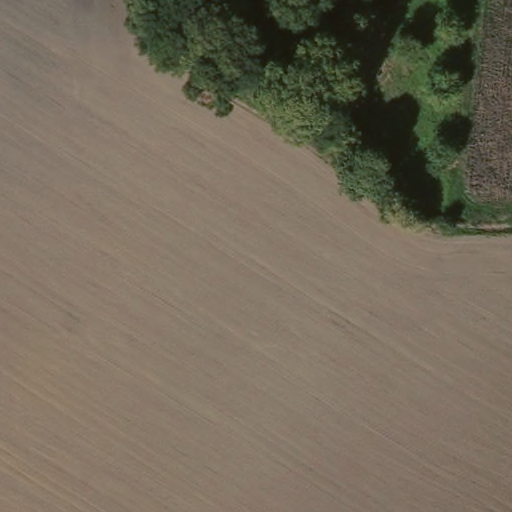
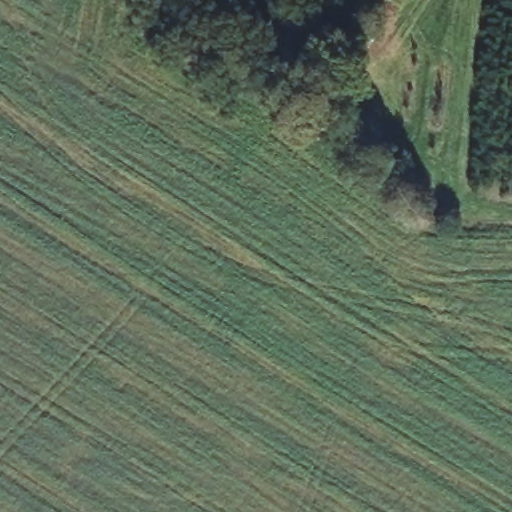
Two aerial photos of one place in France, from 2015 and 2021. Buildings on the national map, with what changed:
unchanged [(277,0),(292,0),(312,26),(277,56),(250,24),(277,0)]

